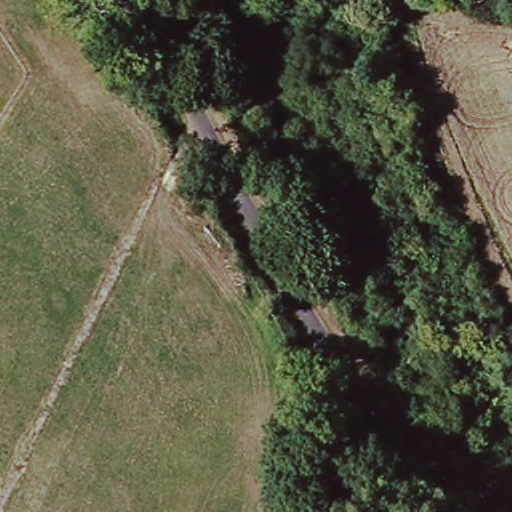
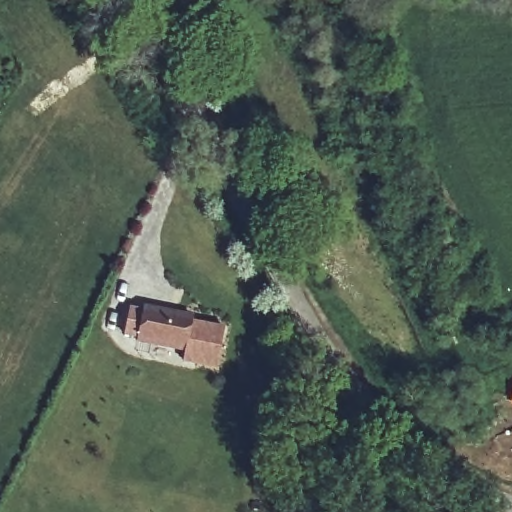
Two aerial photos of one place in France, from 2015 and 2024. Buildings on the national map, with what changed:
new [(129,307),(143,310),(144,306),(193,317),(191,322),(223,328),(215,367),(182,359),(184,350),(136,340),(138,335),(123,332),(129,307)]

